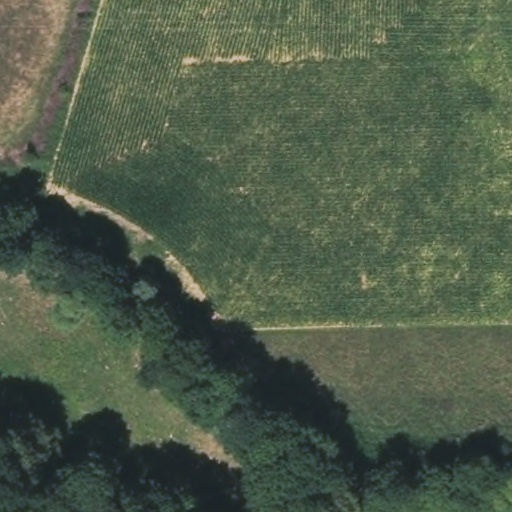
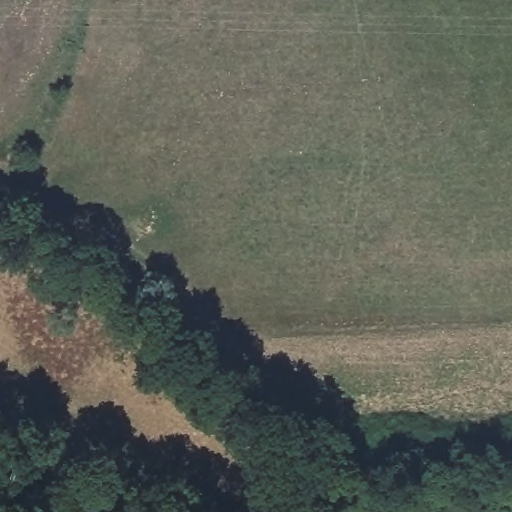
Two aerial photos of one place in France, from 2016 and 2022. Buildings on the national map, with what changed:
unchanged [(132,267),(157,289),(139,310),(118,282),(132,267)]

